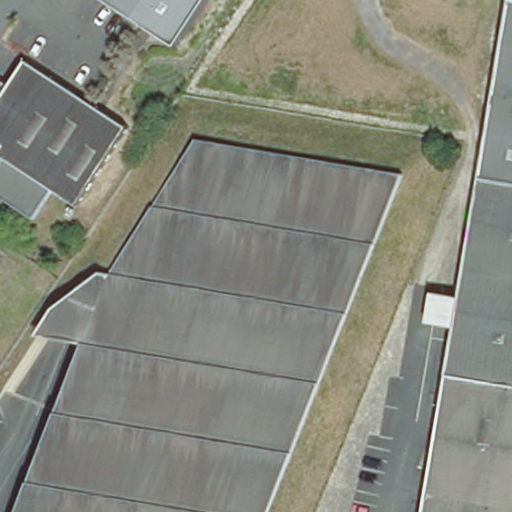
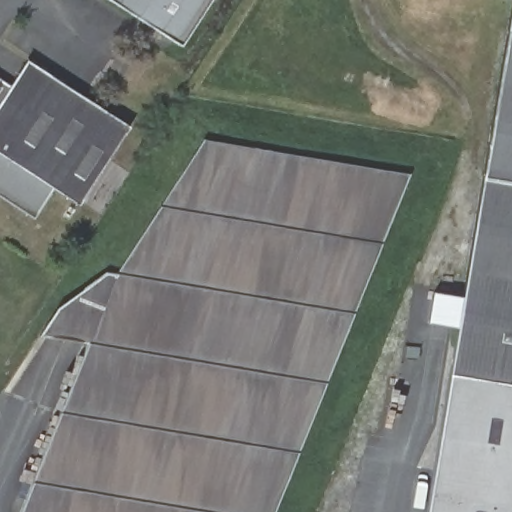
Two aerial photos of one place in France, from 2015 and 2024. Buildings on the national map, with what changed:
unchanged [(120,0),(208,0),(180,41),(120,0)]
unchanged [(512,2),(512,184),(480,179),(512,2)]
unchanged [(0,182),(0,73),(14,83),(32,56),(134,125),(84,204),(60,187),(40,219),(0,193),(0,182)]
unchanged [(89,302),(113,288),(127,294),(196,153),(405,185),(273,512),(22,512),(101,346),(117,313),(89,302)]
unchanged [(455,328),(427,324),(433,292),(461,295),(480,179),(512,184),(512,512),(424,512),(455,328)]
unchanged [(52,336),(66,313),(89,302),(117,313),(101,346),(52,336)]

